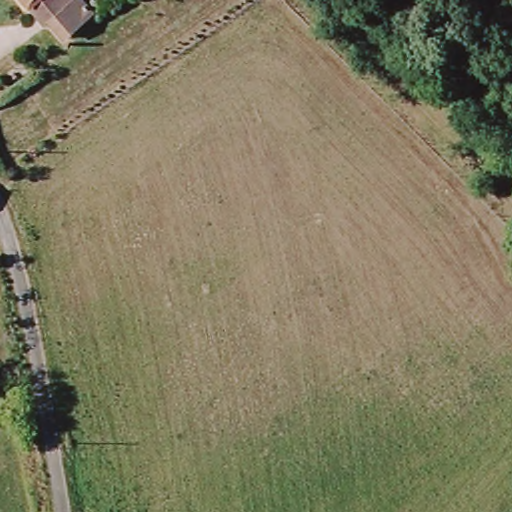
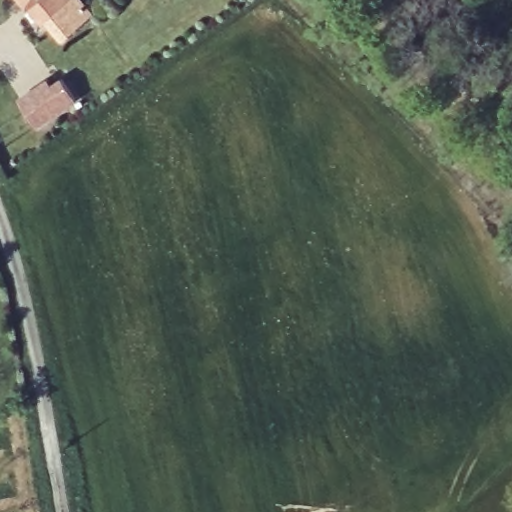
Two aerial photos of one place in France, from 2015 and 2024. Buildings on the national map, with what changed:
unchanged [(56,32),(51,36),(37,19),(32,23),(14,0),(71,0),(81,12),(56,32)]
new [(37,124),(21,94),(49,77),(51,83),(64,75),(77,98),(37,124)]

